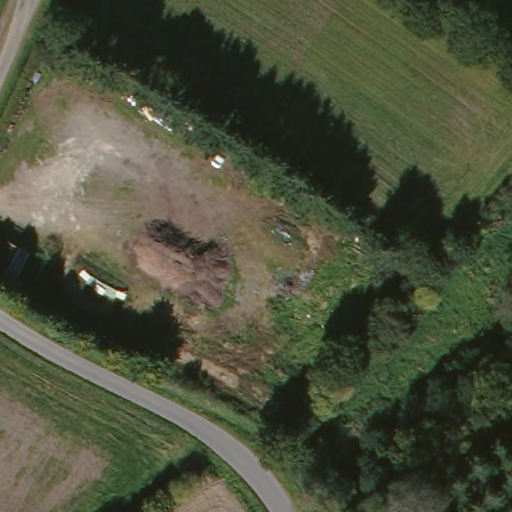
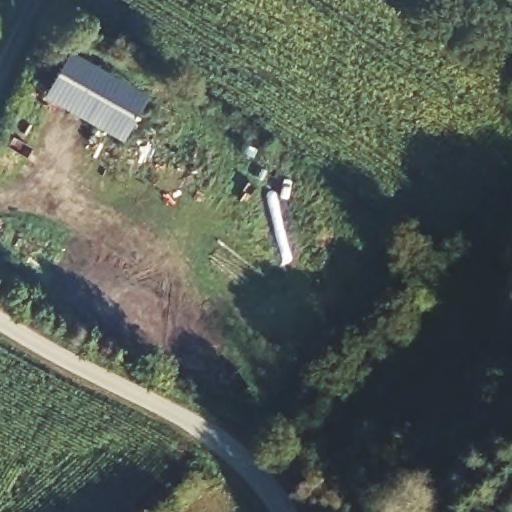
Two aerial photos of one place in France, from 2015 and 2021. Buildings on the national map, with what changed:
new [(42,101),(71,54),(147,99),(121,144),(42,101)]

